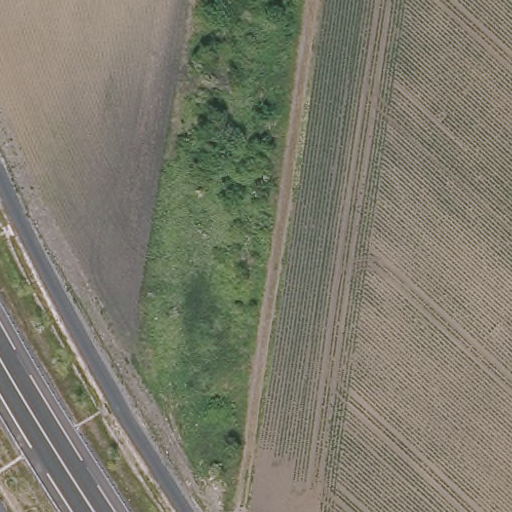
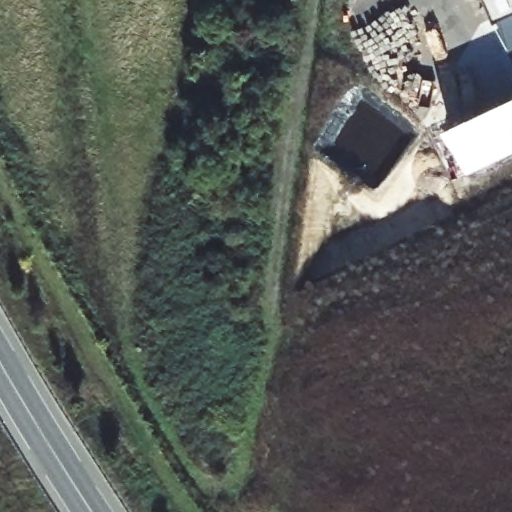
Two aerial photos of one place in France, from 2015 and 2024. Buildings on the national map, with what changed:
new [(512,9),(500,15),(493,0),(512,0),(512,9)]
new [(512,41),(500,15),(512,9),(512,41)]
new [(512,152),(470,172),(449,124),(512,94),(512,152)]

